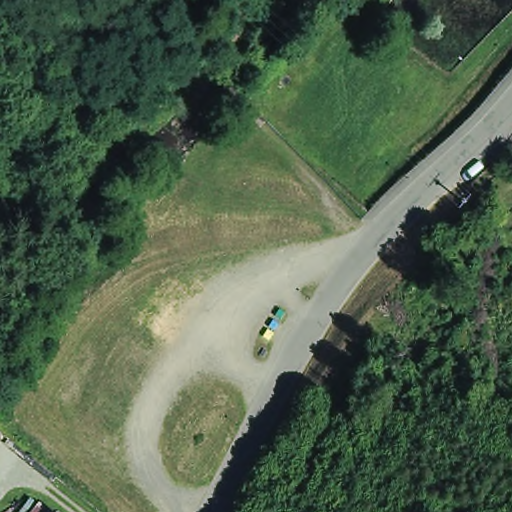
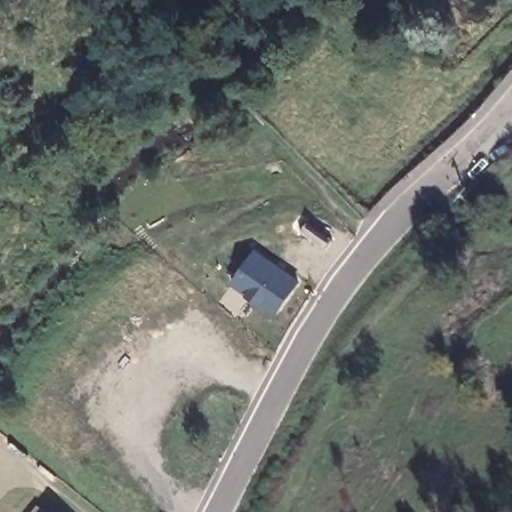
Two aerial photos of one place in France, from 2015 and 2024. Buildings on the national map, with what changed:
new [(255,246),(300,280),(273,315),(229,282),(255,246)]

